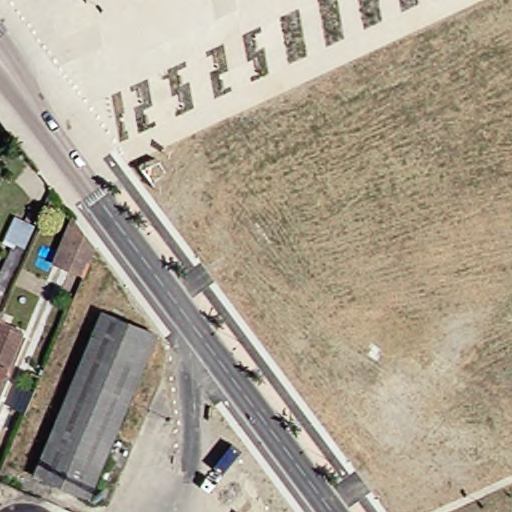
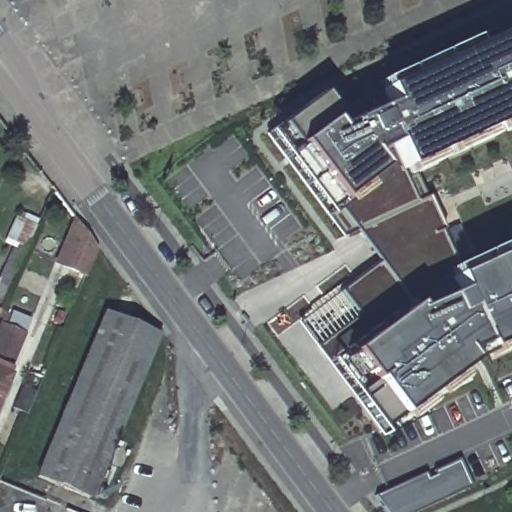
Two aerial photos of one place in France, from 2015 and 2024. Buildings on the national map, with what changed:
new [(313,347),(353,317),(336,292),(375,263),(338,215),(329,223),(263,134),(317,94),(331,114),(512,31),(512,120),(407,168),(422,199),(424,198),(440,232),(437,233),(457,275),(512,250),(512,341),(480,356),(377,432),(313,347)]
unchanged [(0,246),(0,235),(10,218),(28,229),(0,287),(0,256),(4,249),(0,246)]
unchanged [(52,260),(69,222),(90,252),(80,274),(52,260)]
unchanged [(1,320),(0,320),(0,312),(5,314),(14,317),(10,324),(1,320)]
unchanged [(100,318),(144,335),(149,338),(149,340),(81,498),(32,476),(100,318)]
unchanged [(0,394),(0,326),(26,334),(0,394)]
new [(453,464),(465,487),(408,512),(387,512),(376,498),(453,464)]

